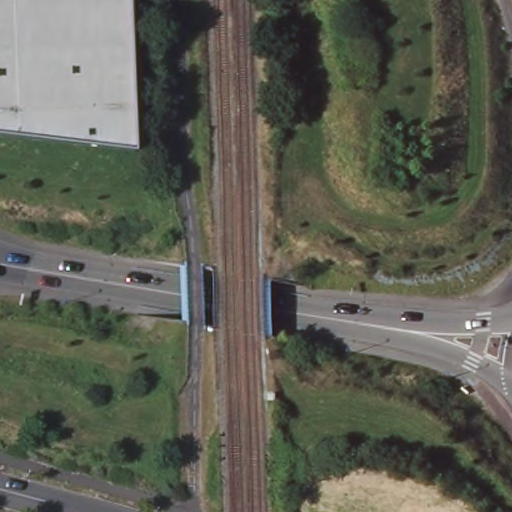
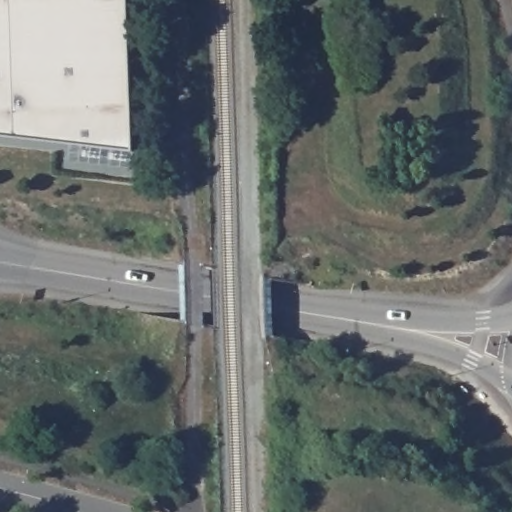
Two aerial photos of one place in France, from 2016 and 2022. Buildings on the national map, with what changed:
unchanged [(135,150),(0,134),(0,0),(128,0),(135,150)]

